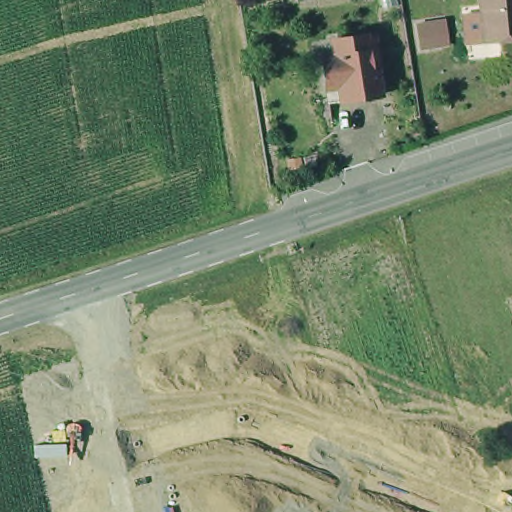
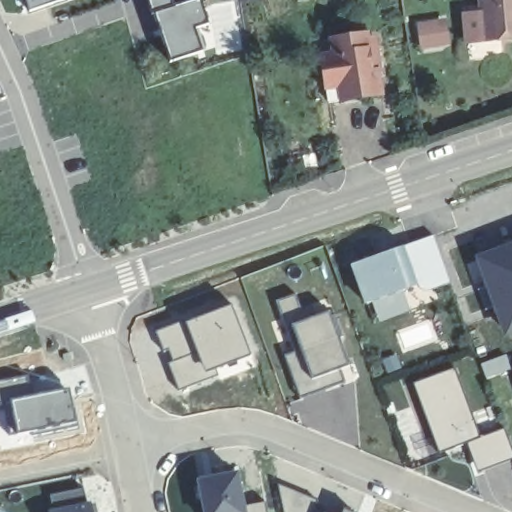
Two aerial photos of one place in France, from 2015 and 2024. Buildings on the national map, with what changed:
new [(26,12),(23,0),(61,0),(26,12)]
new [(152,13),(148,0),(169,0),(172,6),(193,0),(199,0),(206,25),(193,29),(201,53),(169,62),(152,13)]
unchanged [(488,37),(485,0),(512,0),(512,34),(488,37)]
unchanged [(443,20),(447,43),(438,45),(419,47),(416,24),(434,21),(443,20)]
unchanged [(323,73),(319,50),(331,48),(329,32),(365,27),(366,32),(374,31),(376,41),(379,40),(383,64),(376,66),(379,89),(339,96),(339,93),(327,96),(323,73)]
new [(433,234),(449,285),(368,310),(354,261),(433,234)]
new [(512,241),(512,335),(503,339),(472,256),(512,241)]
new [(231,305),(251,357),(217,371),(218,374),(178,390),(155,331),(231,305)]
new [(328,310),(348,369),(311,380),(288,325),(328,310)]
new [(512,366),(512,371),(511,367),(512,366)]
new [(439,454),(414,384),(454,369),(480,439),(504,430),(512,450),(512,461),(478,474),(467,444),(439,454)]
new [(33,395),(70,389),(78,429),(8,440),(0,408),(0,379),(28,376),(33,395)]
new [(201,512),(193,479),(238,472),(244,505),(264,501),(267,512),(201,512)]
new [(309,512),(283,512),(278,484),(314,500),(309,512)]
new [(91,502),(91,505),(96,504),(98,512),(49,512),(53,510),(50,495),(84,489),(86,503),(91,502)]
new [(347,512),(342,512),(343,511),(347,512)]

